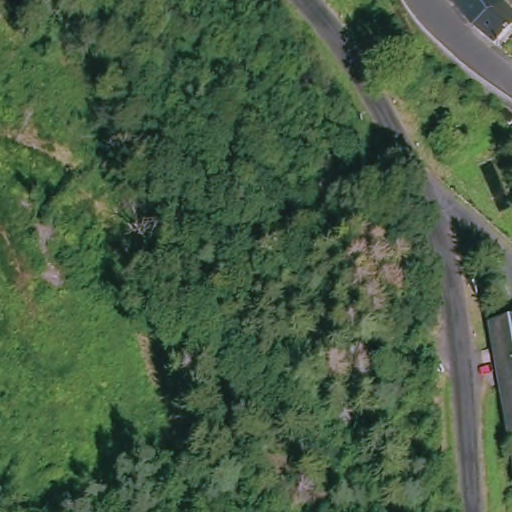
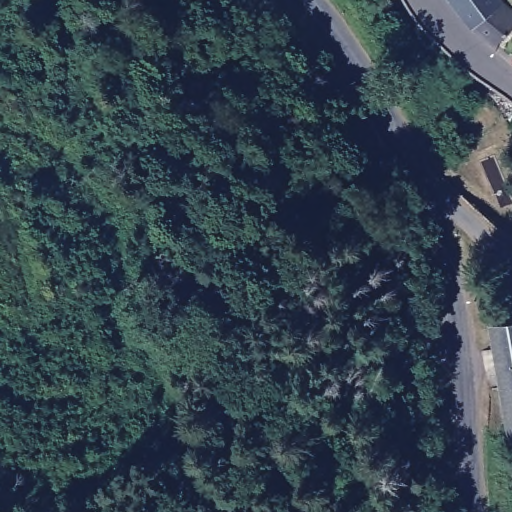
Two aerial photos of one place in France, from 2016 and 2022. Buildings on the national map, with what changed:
unchanged [(442,0),(491,0),(510,24),(488,47),(479,42),(464,29),(442,0)]
unchanged [(512,431),(505,432),(487,324),(512,320),(512,431)]
unchanged [(512,455),(512,474),(509,456),(512,455)]

